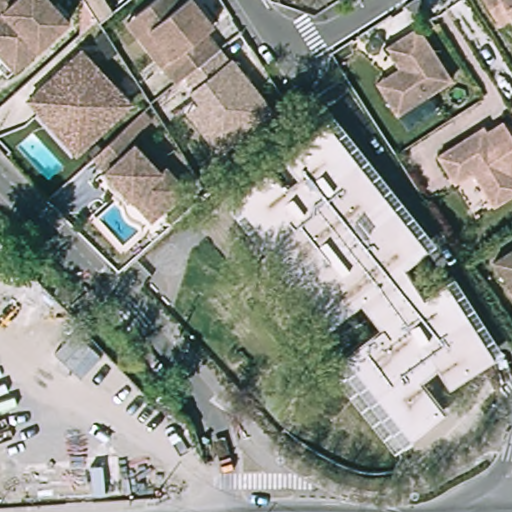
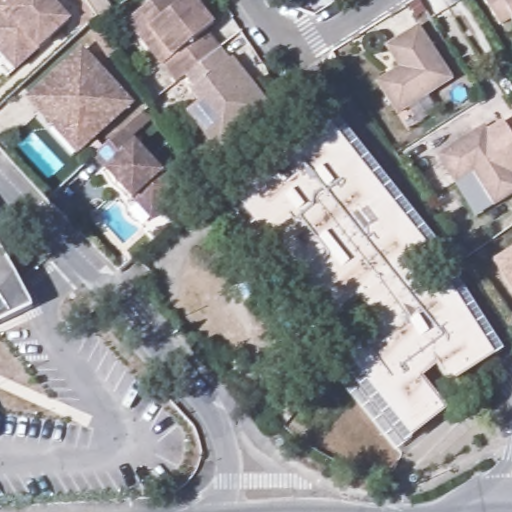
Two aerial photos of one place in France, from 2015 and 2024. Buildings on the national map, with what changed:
unchanged [(20,65),(16,68),(0,50),(0,0),(50,0),(68,20),(20,65)]
unchanged [(190,1),(214,30),(207,36),(220,54),(186,80),(177,88),(152,57),(128,26),(139,17),(161,0),(181,0),(185,5),(190,1)]
unchanged [(502,27),(485,0),(512,0),(512,21),(502,27)]
unchanged [(383,87),(406,73),(392,52),(424,32),(457,85),(403,119),(383,87)]
unchanged [(187,115),(200,105),(192,95),(195,92),(186,80),(220,54),(230,65),(232,64),(272,115),(232,146),(220,156),(187,115)]
unchanged [(59,132),(33,104),(87,55),(92,61),(135,109),(93,147),(82,157),(59,132)]
unchanged [(435,241),(426,248),(405,266),(425,295),(443,283),(456,276),(505,351),(492,358),(450,385),(437,371),(422,381),(443,414),(408,438),(393,453),(327,368),(345,351),(377,327),(357,305),(335,320),(326,330),(223,200),(233,192),(268,166),(283,186),(298,177),(282,156),(323,124),(335,115),(435,241)]
unchanged [(94,156),(99,151),(123,130),(181,193),(152,220),(94,156)]
unchanged [(488,136),(491,140),(507,130),(512,139),(512,206),(500,214),(478,180),(460,191),(443,165),(488,136)]
new [(32,307),(0,323),(0,247),(12,269),(32,307)]
unchanged [(493,261),(512,249),(512,289),(493,261)]
unchanged [(300,413),(295,416),(292,418),(278,401),(285,396),(295,407),(300,413)]

